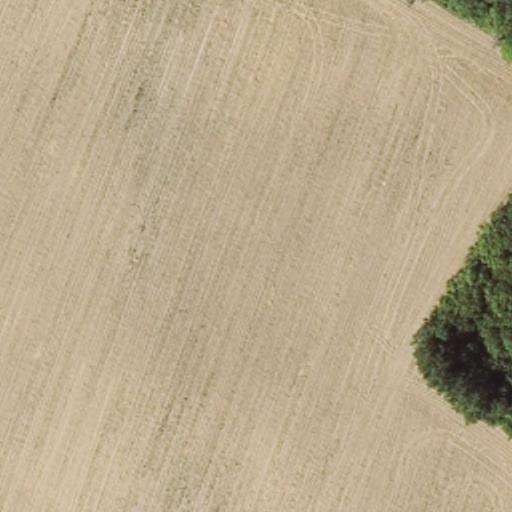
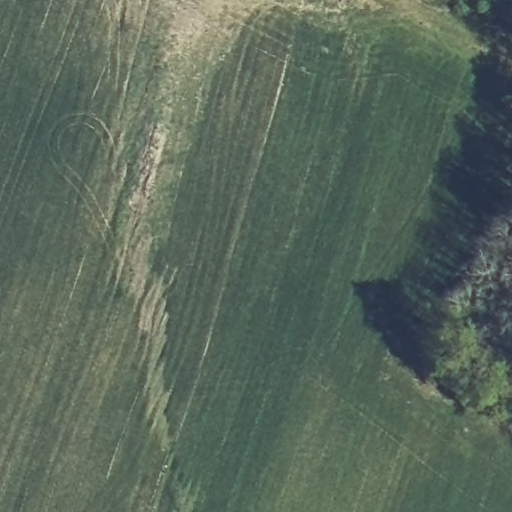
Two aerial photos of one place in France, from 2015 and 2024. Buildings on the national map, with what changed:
[]

